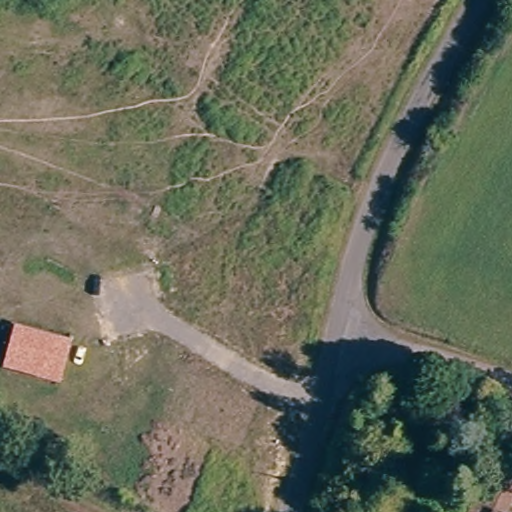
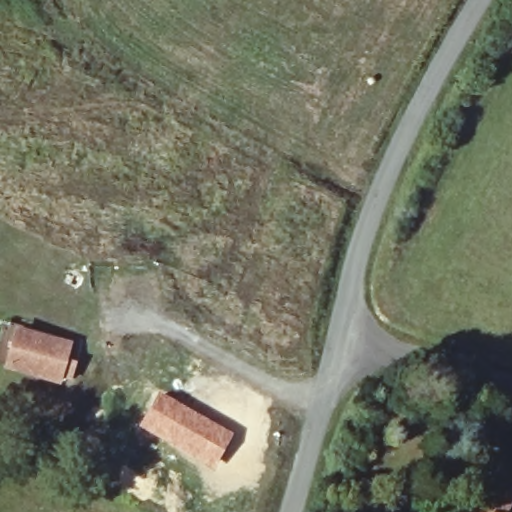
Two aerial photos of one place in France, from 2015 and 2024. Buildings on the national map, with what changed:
unchanged [(71,339),(58,385),(2,369),(14,323),(71,339)]
new [(159,389),(235,433),(212,473),(137,426),(159,389)]
unchanged [(512,479),(512,506),(509,512),(467,512),(482,468),(512,479)]

